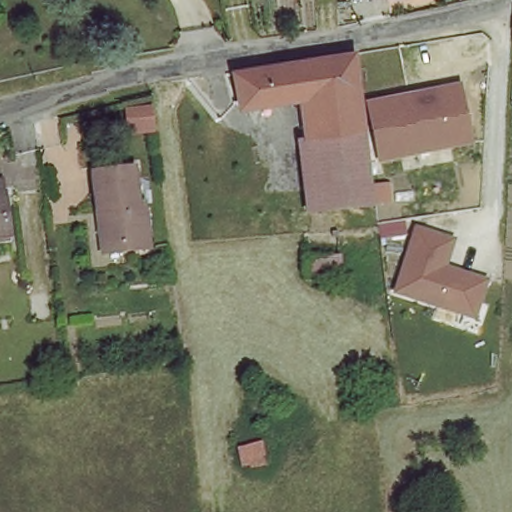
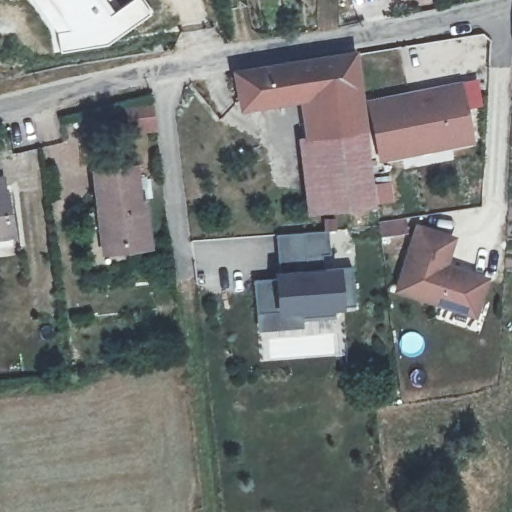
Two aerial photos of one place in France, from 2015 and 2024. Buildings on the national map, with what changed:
new [(126,0),(145,0),(152,10),(104,44),(56,52),(50,29),(28,0),(110,0),(115,8),(126,0)]
unchanged [(315,90),(246,102),(240,67),(359,46),(364,98),(366,124),(321,131),(315,90)]
unchanged [(368,123),(366,124),(364,98),(461,82),(473,146),(372,163),(368,123)]
unchanged [(126,106),(156,104),(159,128),(128,134),(126,106)]
unchanged [(368,123),(372,163),(376,199),(324,205),(315,132),(321,131),(366,124),(368,123)]
unchanged [(89,166),(131,161),(134,195),(138,195),(145,240),(120,243),(98,245),(93,201),(89,166)]
unchanged [(0,177),(4,176),(7,191),(13,232),(0,234),(0,177)]
unchanged [(413,223),(455,238),(446,262),(491,277),(476,318),(391,291),(413,223)]
new [(257,331),(253,281),(276,279),(275,234),(326,231),(328,253),(320,255),(321,267),(339,266),(340,270),(350,269),(353,304),(341,306),(342,309),(333,310),(334,316),(301,319),(301,327),(257,331)]

